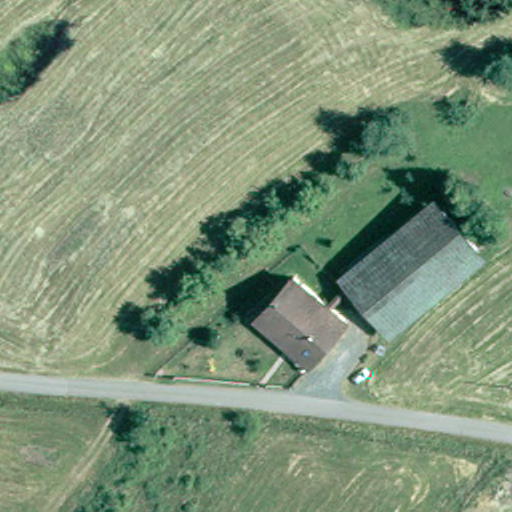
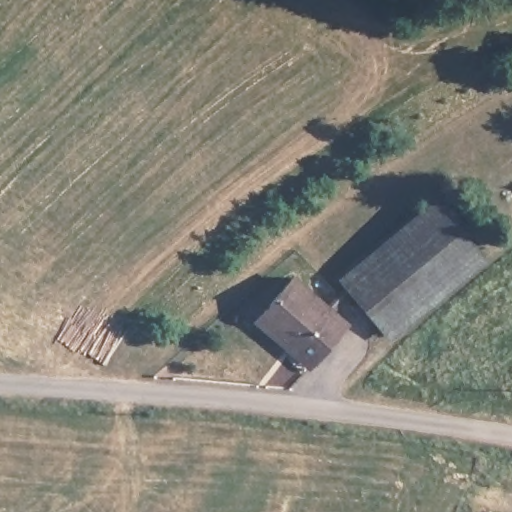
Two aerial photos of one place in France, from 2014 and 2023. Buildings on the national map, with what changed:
unchanged [(345,286),(443,209),(476,250),(379,329),(345,286)]
unchanged [(263,325),(253,316),(257,311),(292,272),(307,284),(346,318),(312,357),(307,363),(263,325)]

